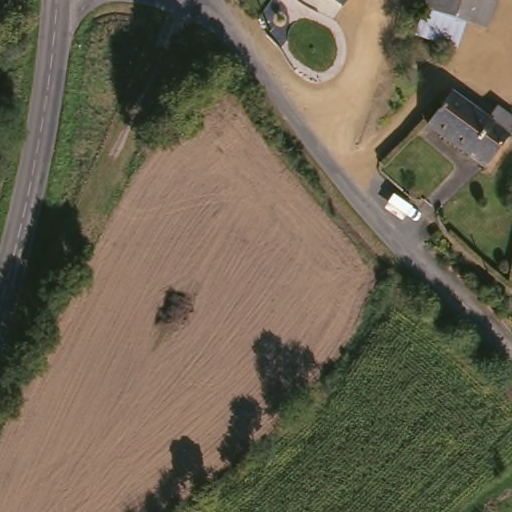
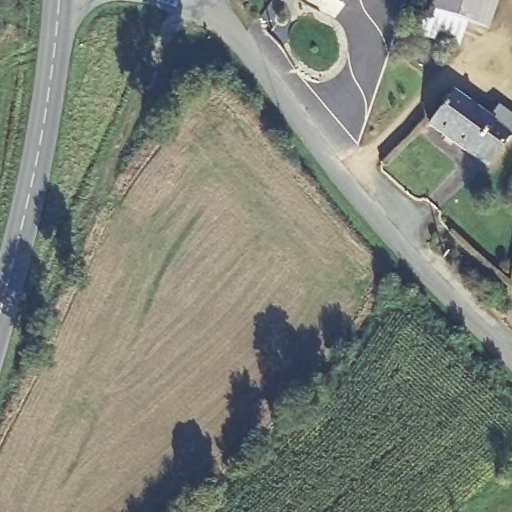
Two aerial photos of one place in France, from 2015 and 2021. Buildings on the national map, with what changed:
unchanged [(346,3),(341,0),(349,0),(346,3)]
unchanged [(494,25),(475,18),(466,44),(437,35),(446,7),(426,0),(503,0),(494,25)]
unchanged [(512,134),(495,157),(442,117),(467,83),(512,117),(512,134)]

